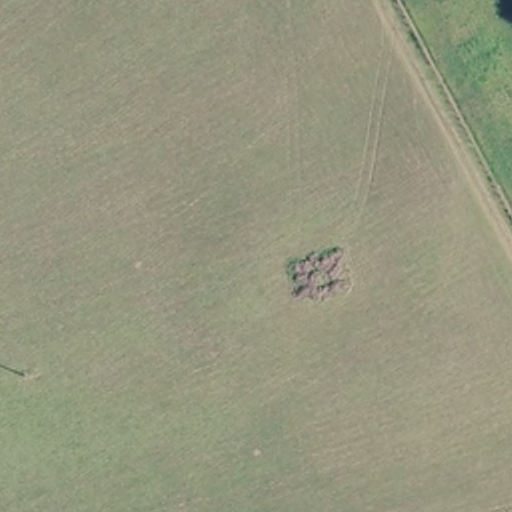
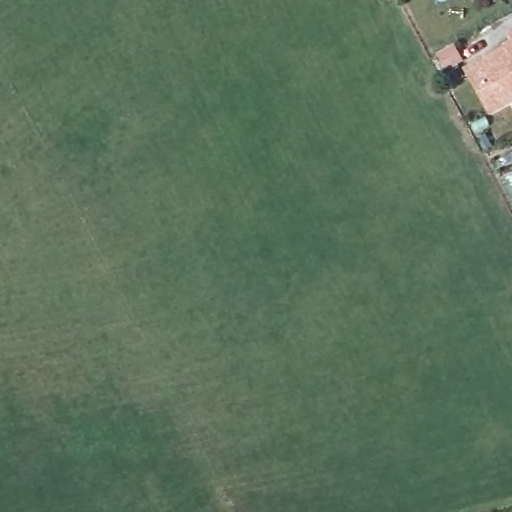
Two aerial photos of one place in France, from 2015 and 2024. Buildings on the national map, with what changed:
new [(510,43),(505,34),(512,30),(512,104),(488,117),(462,69),(510,43)]
new [(452,49),(460,62),(446,69),(439,56),(452,49)]

